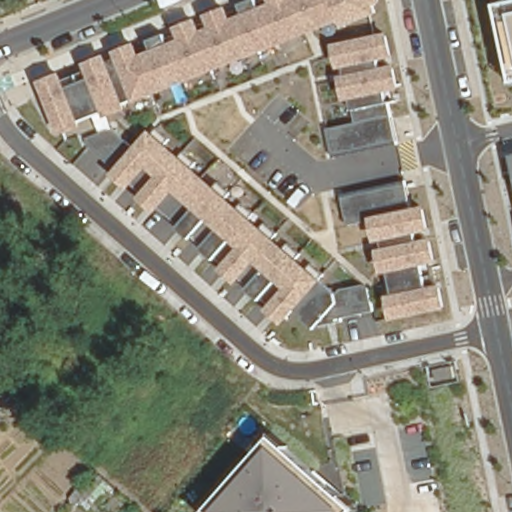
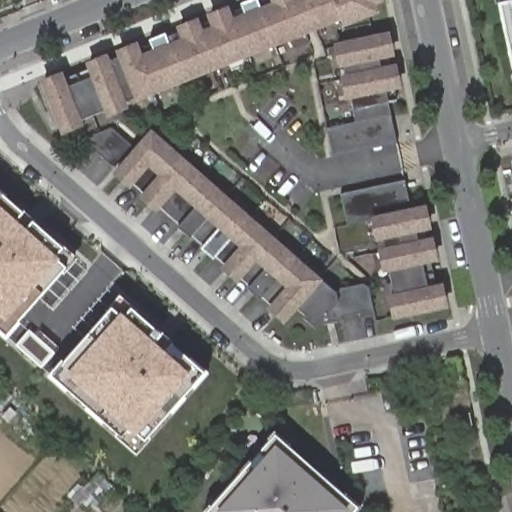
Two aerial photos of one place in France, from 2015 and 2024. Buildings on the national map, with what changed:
unchanged [(341,22),(127,105),(129,111),(107,120),(102,112),(83,118),(85,127),(61,136),(40,79),(62,71),(66,79),(88,71),(85,62),(138,42),(142,54),(153,51),(149,41),(166,35),(169,44),(181,40),(175,27),(229,7),(234,19),(246,14),(242,4),(255,0),(258,0),(261,7),(272,3),(271,0),(384,0),(385,2),(376,6),(378,16),(345,29),(341,22)]
unchanged [(512,2),(512,66),(499,5),(512,2)]
unchanged [(334,155),(328,128),(355,122),(351,100),(343,100),(333,43),(391,32),(403,87),(388,90),(397,142),(334,155)]
unchanged [(345,287),(368,283),(375,307),(343,315),(345,322),(315,328),(297,312),(284,327),(111,174),(115,170),(94,151),(89,137),(115,128),(137,146),(151,130),(337,292),(345,287)]
unchanged [(448,310),(393,320),(370,222),(350,226),(342,196),(405,184),(412,209),(427,206),(448,310)]
new [(32,222),(62,249),(74,258),(64,267),(65,268),(5,337),(0,332),(0,193),(32,222)]
new [(50,377),(111,307),(123,317),(130,308),(205,375),(135,455),(50,377)]
new [(29,330),(55,352),(41,368),(15,346),(29,330)]
unchanged [(358,512),(207,512),(276,435),(361,508),(358,512)]

